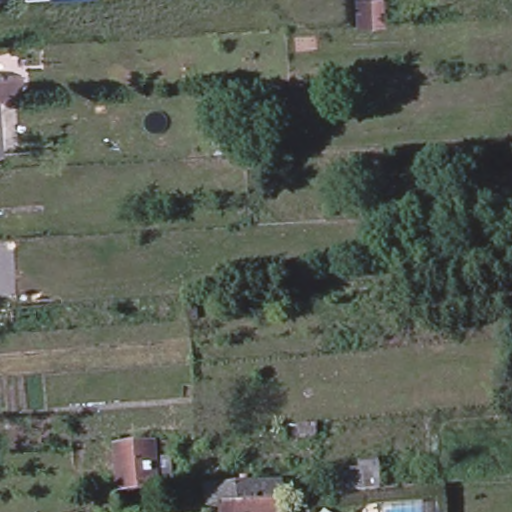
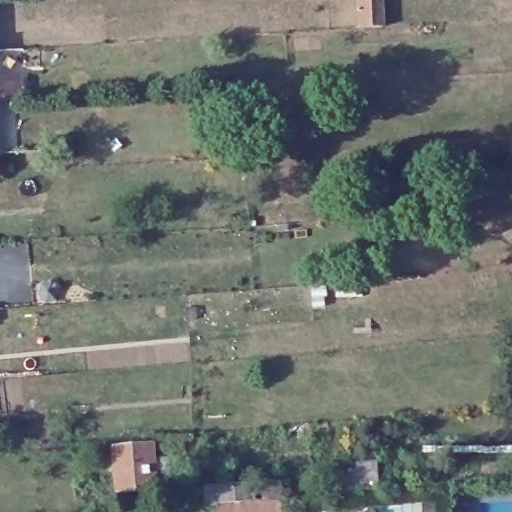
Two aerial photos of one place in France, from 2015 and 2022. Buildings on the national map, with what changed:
unchanged [(383,24),(359,26),(358,0),(381,0),(383,24)]
unchanged [(0,93),(0,71),(21,69),(21,76),(16,76),(18,91),(0,93)]
unchanged [(168,456),(169,469),(169,470),(171,486),(116,490),(114,475),(112,445),(153,441),(154,458),(168,456)]
unchanged [(336,489),(334,474),(349,473),(349,469),(359,468),(358,460),(376,459),(377,471),(378,486),(336,489)]
unchanged [(281,498),(218,503),(206,503),(203,486),(279,480),(281,498)]
unchanged [(281,512),(218,512),(218,503),(281,498),(281,512)]

